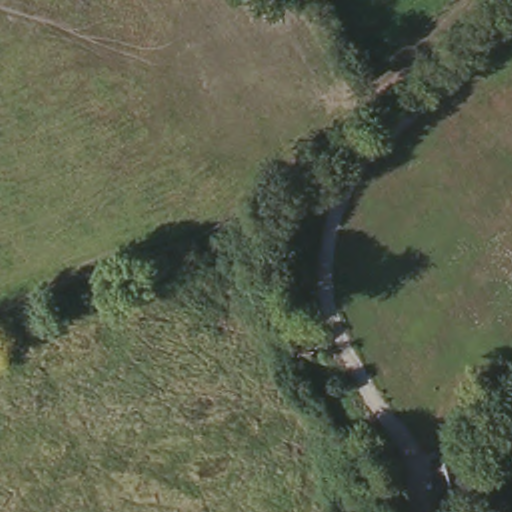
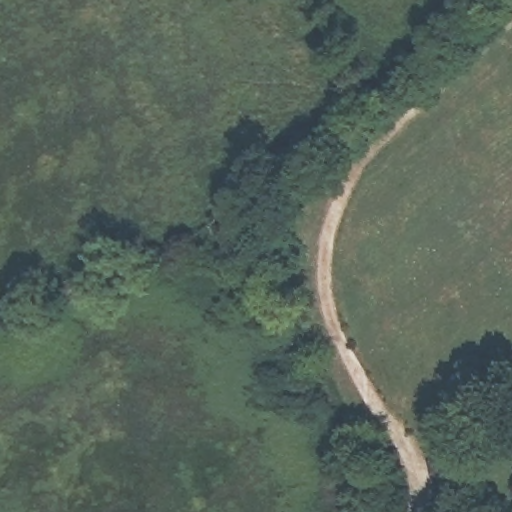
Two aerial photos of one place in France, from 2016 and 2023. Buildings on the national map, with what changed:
unchanged [(434,470),(434,468),(430,457),(458,446),(462,459),(466,471),(465,476),(458,478),(461,491),(463,496),(460,497),(444,502),(434,470)]

